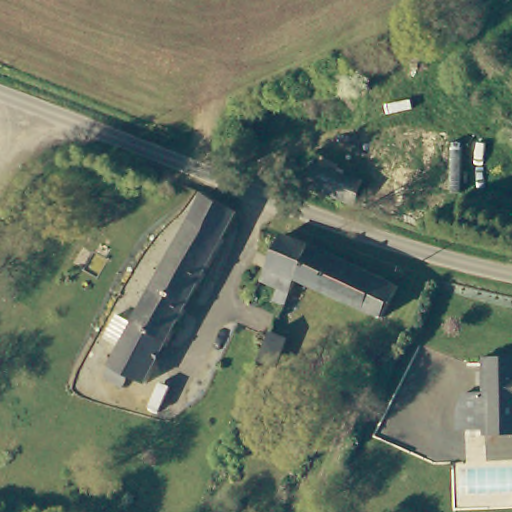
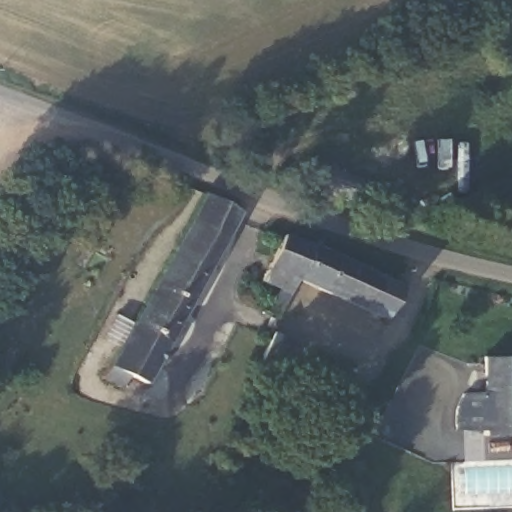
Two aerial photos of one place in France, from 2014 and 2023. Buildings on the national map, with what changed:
unchanged [(314,163),(366,183),(358,203),(307,185),(314,163)]
unchanged [(199,199),(232,214),(141,381),(126,374),(121,386),(103,377),(199,199)]
unchanged [(292,289),(263,277),(282,233),(309,245),(296,282),(292,289)]
unchanged [(309,245),(395,281),(376,320),(296,282),(309,245)]
unchanged [(262,338),(282,345),(272,372),(250,364),(262,338)]
unchanged [(459,434),(454,420),(462,385),(476,385),(477,357),(512,357),(512,437),(473,439),(459,434)]

